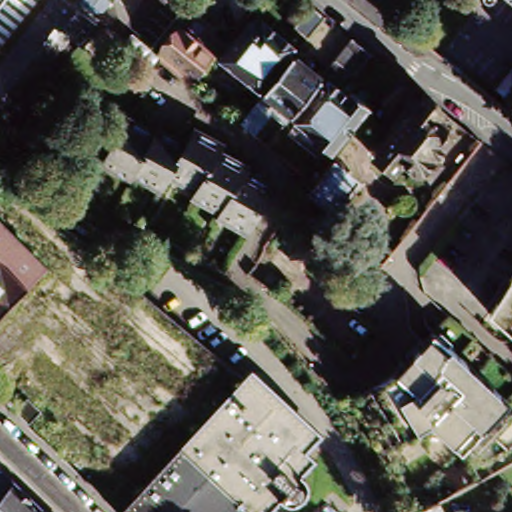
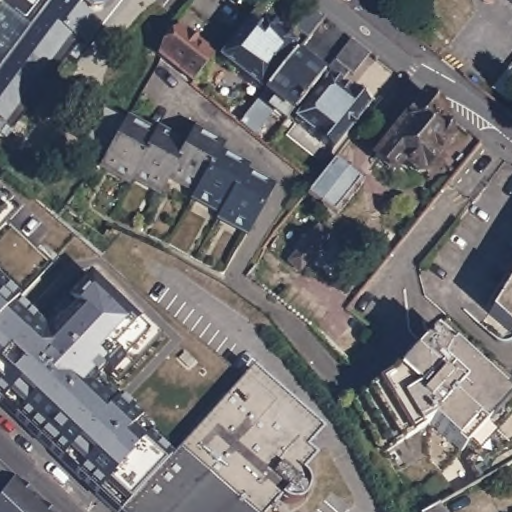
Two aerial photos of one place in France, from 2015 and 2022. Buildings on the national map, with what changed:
unchanged [(32,0),(0,39),(0,0),(32,0)]
unchanged [(80,44),(68,37),(5,122),(0,119),(0,64),(48,0),(62,0),(95,24),(80,44)]
unchanged [(87,5),(81,0),(101,0),(97,4),(87,5)]
unchanged [(512,0),(512,14),(494,0),(512,0)]
unchanged [(307,40),(292,28),(309,7),(324,19),(307,40)]
unchanged [(160,55),(159,53),(178,30),(180,32),(190,20),(222,46),(212,57),(200,72),(190,83),(158,57),(160,55)]
unchanged [(255,28),(260,22),(292,48),(256,92),(217,60),(247,22),(255,28)]
unchanged [(347,72),(333,61),(350,40),(364,51),(347,72)]
unchanged [(245,115),(292,57),(319,79),(312,87),(287,118),(285,121),(273,111),(252,136),(237,125),(224,114),(232,104),(245,115)]
unchanged [(312,87),(317,90),(325,80),(345,96),(348,92),(367,107),(330,152),(287,118),(312,87)]
unchanged [(423,174),(405,176),(390,163),(385,169),(367,154),(417,92),(436,107),(430,115),(442,124),(446,124),(447,134),(443,134),(427,154),(435,160),(423,174)]
unchanged [(107,146),(120,121),(150,137),(152,132),(182,148),(190,133),(218,147),(215,155),(244,171),(242,175),(270,190),(247,234),(218,219),(221,214),(191,199),(195,192),(166,177),(158,192),(128,177),(127,181),(94,164),(107,146)]
unchanged [(357,182),(331,213),(307,192),(312,186),(331,162),(357,182)]
new [(10,218),(13,220),(7,227),(0,237),(0,208),(10,218)]
demolished [(48,265),(0,315),(0,218),(48,265)]
new [(49,267),(16,302),(0,287),(0,237),(7,227),(49,267)]
unchanged [(327,237),(332,236),(333,243),(328,244),(318,256),(316,256),(313,253),(300,268),(298,268),(288,260),(316,227),(327,237)]
unchanged [(512,274),(512,347),(484,321),(512,274)]
new [(16,302),(42,328),(52,325),(58,317),(62,321),(72,306),(66,300),(88,277),(137,326),(141,321),(158,337),(160,338),(117,385),(116,384),(110,378),(102,371),(95,378),(140,420),(137,422),(172,458),(167,462),(162,467),(149,482),(125,508),(130,512),(113,512),(98,497),(0,403),(0,287),(16,302)]
unchanged [(478,477),(467,458),(472,454),(463,447),(460,450),(428,422),(382,450),(352,399),(385,380),(430,332),(505,401),(500,407),(512,418),(512,458),(500,465),(478,477)]
unchanged [(125,508),(149,482),(167,462),(174,455),(199,428),(210,417),(249,374),(320,439),(306,454),(315,462),(307,472),(308,473),(310,476),(311,477),(312,480),(312,482),(312,485),(311,487),(310,488),(310,489),(309,491),(307,492),(306,494),(305,495),(302,496),(300,497),(297,497),(295,497),(293,497),(292,496),(290,496),(289,495),(287,493),(270,512),(130,512),(125,508)]
unchanged [(10,480),(0,493),(0,469),(10,480)]
unchanged [(10,480),(45,512),(0,512),(0,493),(10,480)]
unchanged [(437,503),(442,512),(423,512),(437,503)]

